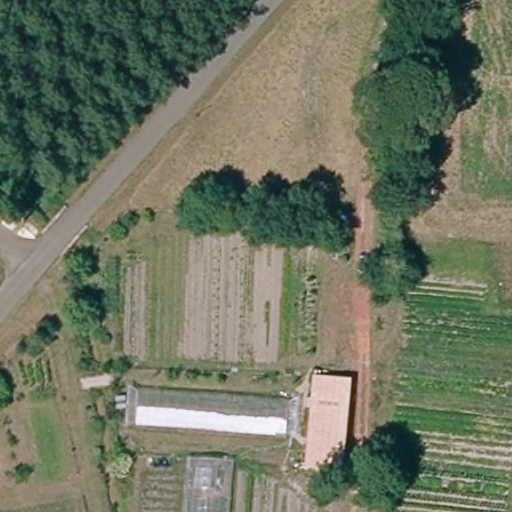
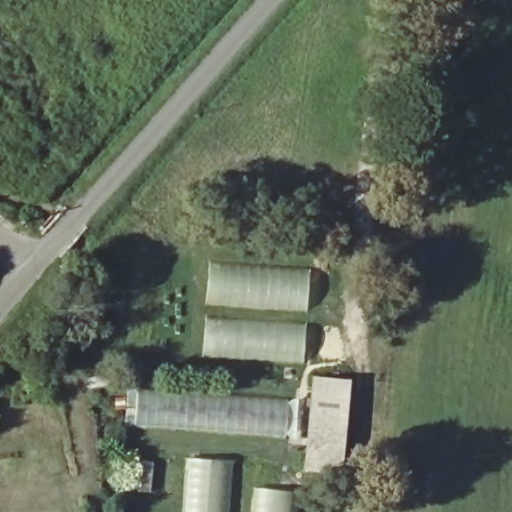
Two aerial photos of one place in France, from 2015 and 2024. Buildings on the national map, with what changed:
new [(208,258),(309,266),(306,312),(205,305),(208,258)]
new [(204,316),(305,323),(303,364),(200,357),(204,316)]
unchanged [(342,475),(304,471),(312,377),(351,380),(342,475)]
unchanged [(285,438),(134,427),(137,392),(288,400),(285,438)]
unchanged [(229,512),(186,512),(189,458),(233,461),(229,512)]
new [(299,492),(297,512),(251,512),(253,487),(299,492)]

